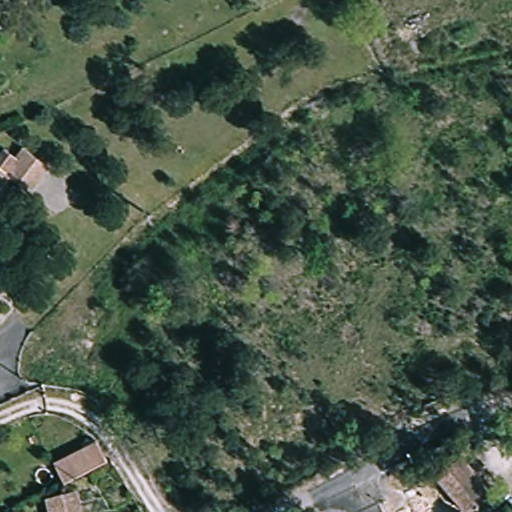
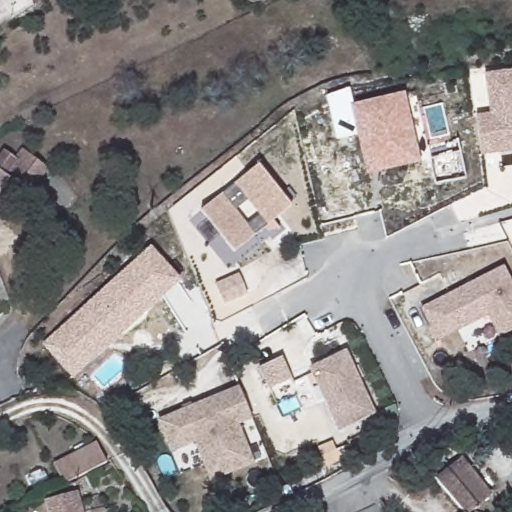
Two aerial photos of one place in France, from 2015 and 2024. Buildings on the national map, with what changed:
new [(476,115),(489,113),(483,73),(512,69),(512,152),(481,156),(476,115)]
new [(367,175),(357,134),(336,139),(327,96),(349,88),(353,104),(405,92),(421,162),(367,175)]
unchanged [(3,150),(17,160),(6,175),(10,178),(0,190),(0,154),(3,150)]
new [(260,166),(291,209),(231,253),(200,210),(260,166)]
new [(74,379),(42,344),(151,246),(183,281),(74,379)]
new [(512,284),(512,332),(500,338),(489,316),(438,342),(422,310),(504,267),(512,284)]
new [(310,370),(345,352),(355,372),(358,377),(375,412),(340,430),(326,401),(318,386),(310,370)]
new [(280,358),(291,379),(268,391),(257,370),(280,358)]
new [(241,388),(253,418),(238,424),(252,459),(211,476),(195,437),(170,447),(160,422),(241,388)]
unchanged [(96,442),(107,462),(63,484),(53,463),(96,442)]
unchanged [(466,458),(497,494),(474,512),(470,512),(441,478),(430,466),(437,460),(448,472),(466,458)]
unchanged [(76,493),(81,512),(50,512),(47,500),(76,493)]

